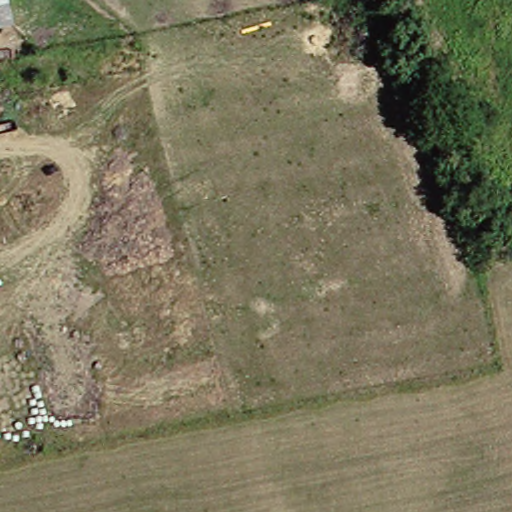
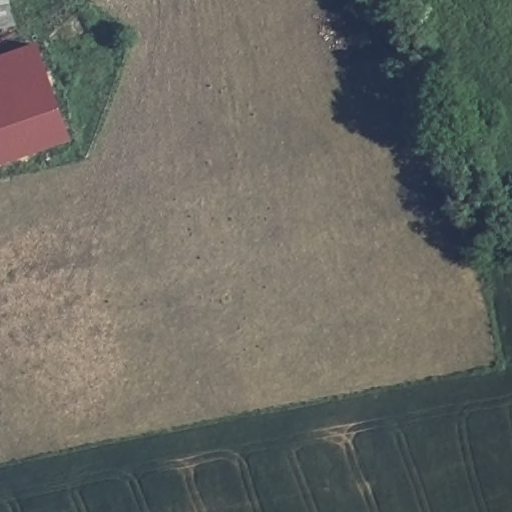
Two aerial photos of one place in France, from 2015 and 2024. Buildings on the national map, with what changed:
new [(0,16),(3,27),(0,28),(0,16)]
demolished [(0,32),(0,22),(2,31),(0,32)]
new [(68,141),(0,164),(0,58),(37,46),(68,141)]

